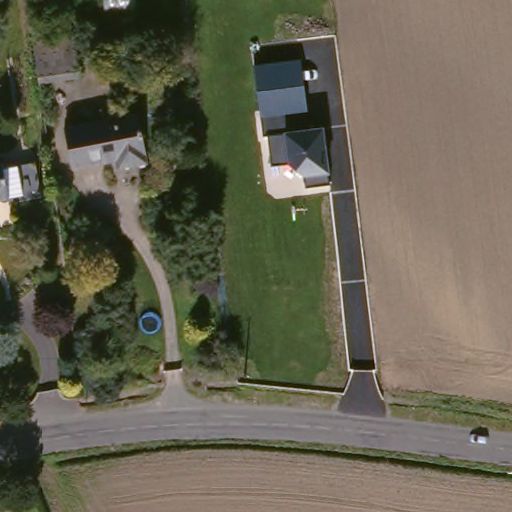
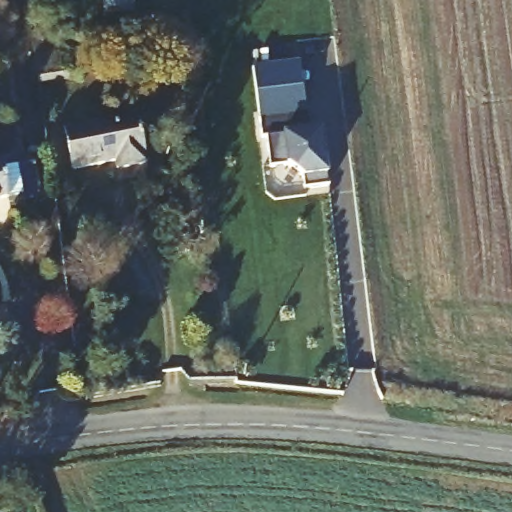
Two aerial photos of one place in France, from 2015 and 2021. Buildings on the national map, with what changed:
unchanged [(260,115),(254,68),(299,63),(306,110),(260,115)]
unchanged [(307,131),(322,130),(328,186),(302,190),(300,181),(286,168),(269,168),(267,136),(262,136),(260,115),(306,110),(307,131)]
unchanged [(145,120),(151,167),(122,172),(121,164),(78,170),(74,129),(145,120)]
unchanged [(5,176),(22,174),(27,204),(10,206),(8,198),(0,199),(0,160),(2,160),(5,176)]

